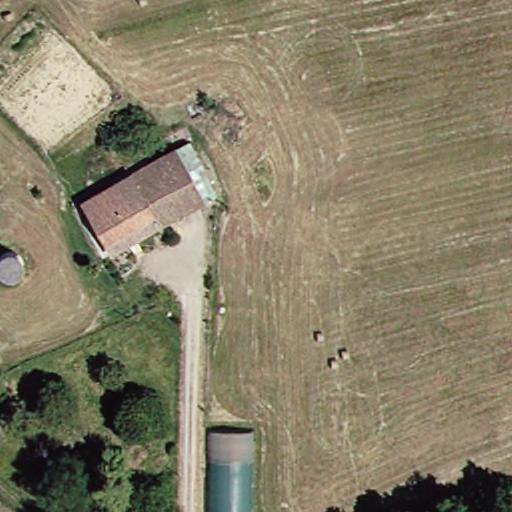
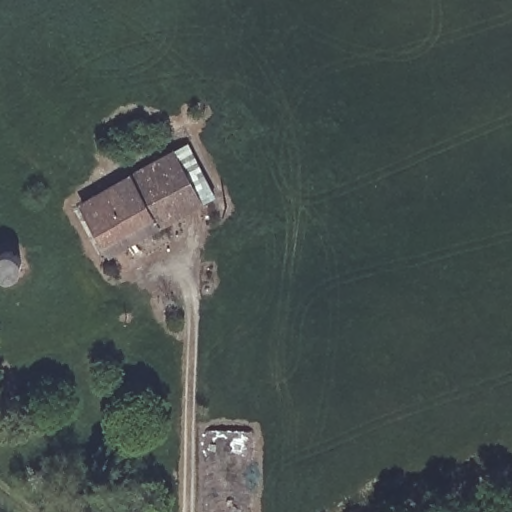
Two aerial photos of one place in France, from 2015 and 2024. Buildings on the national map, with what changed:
unchanged [(180,143),(197,171),(203,167),(215,193),(168,220),(159,203),(109,232),(90,195),(180,143)]
unchanged [(60,227),(52,234),(45,222),(54,216),(60,227)]
unchanged [(0,251),(7,244),(20,252),(26,262),(25,273),(15,280),(1,280),(0,278),(0,251)]
demolished [(254,431),(251,512),(206,512),(208,429),(254,431)]

